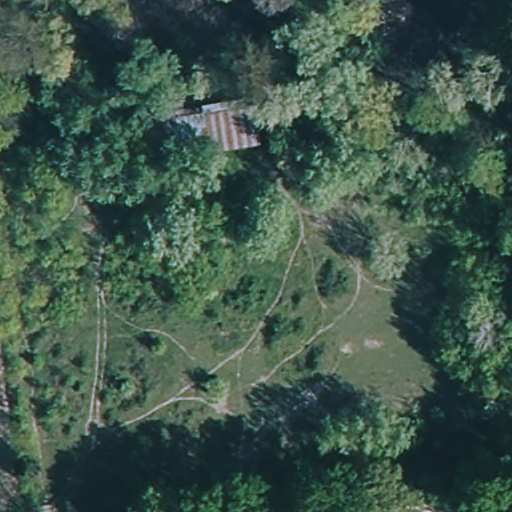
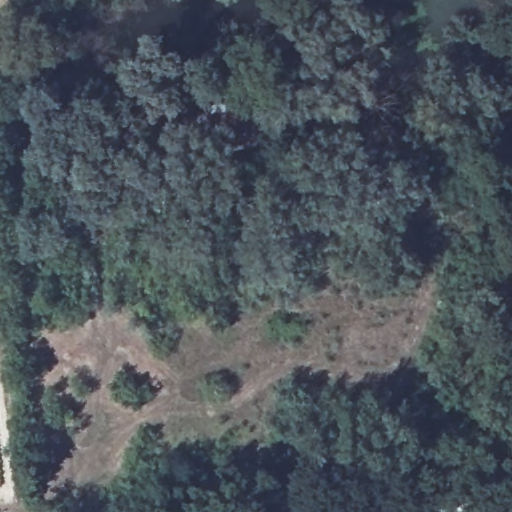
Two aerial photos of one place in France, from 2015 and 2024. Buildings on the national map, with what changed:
unchanged [(238,100),(246,147),(133,166),(125,120),(238,100)]

